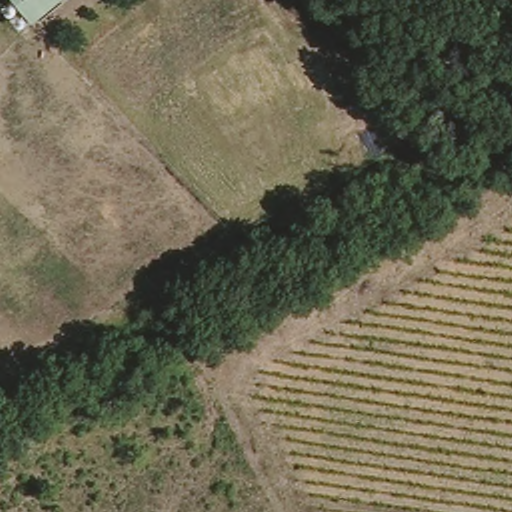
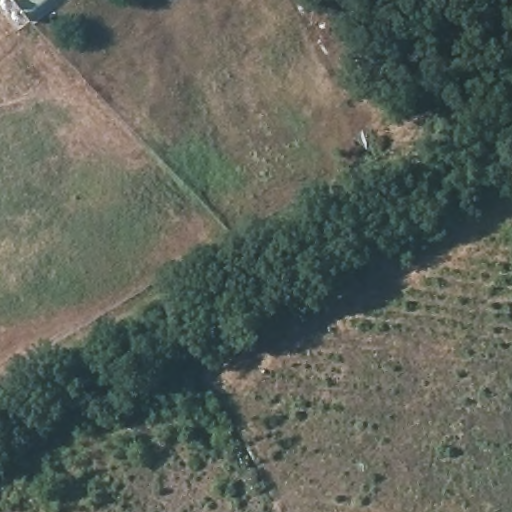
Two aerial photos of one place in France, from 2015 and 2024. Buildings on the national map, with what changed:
unchanged [(10,0),(63,0),(32,26),(10,0)]

